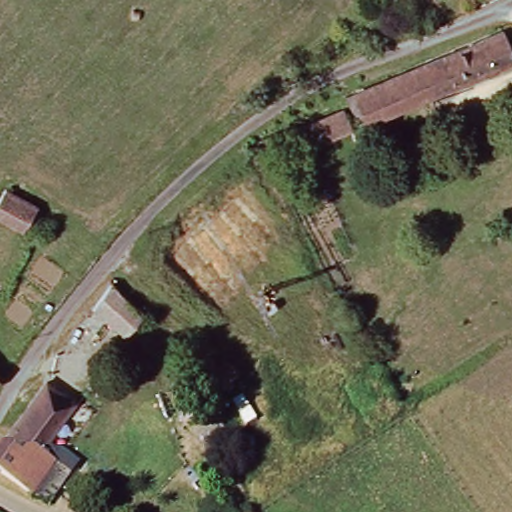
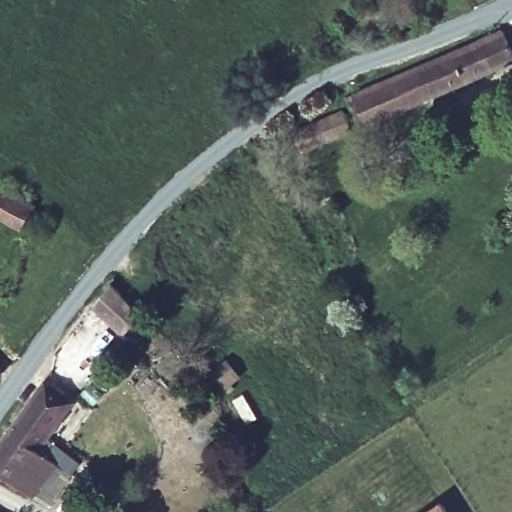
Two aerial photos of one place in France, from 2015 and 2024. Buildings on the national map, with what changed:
unchanged [(503,31),(512,54),(512,66),(364,125),(350,92),(503,31)]
unchanged [(284,134),(334,115),(345,141),(294,161),(284,134)]
unchanged [(34,191),(21,214),(0,200),(0,176),(3,170),(34,191)]
unchanged [(56,451),(76,466),(52,499),(0,471),(0,444),(51,388),(76,410),(43,450),(49,460),(56,451)]
new [(437,503),(443,512),(423,512),(437,503)]

